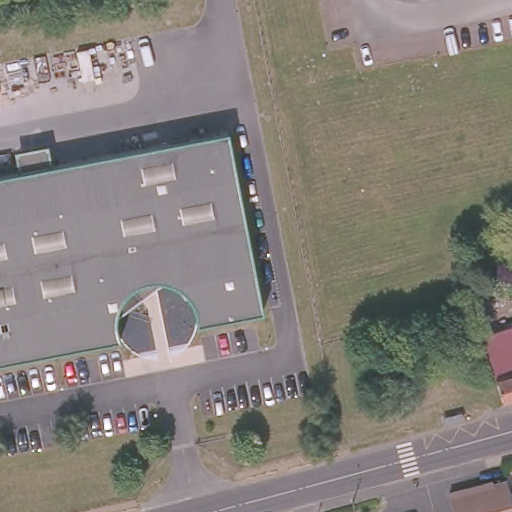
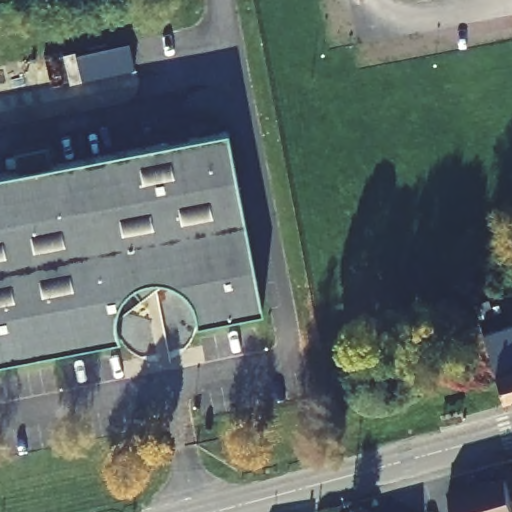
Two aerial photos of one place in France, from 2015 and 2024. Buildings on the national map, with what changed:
new [(135,67),(83,78),(83,81),(70,85),(62,53),(76,50),(77,56),(130,44),(135,67)]
unchanged [(228,132),(264,311),(198,325),(193,310),(186,297),(176,286),(166,281),(115,318),(116,327),(118,338),(0,361),(0,176),(228,132)]
unchanged [(482,332),(512,325),(512,398),(501,401),(482,332)]
unchanged [(468,496),(507,485),(512,501),(512,512),(455,512),(450,497),(467,492),(468,496)]

